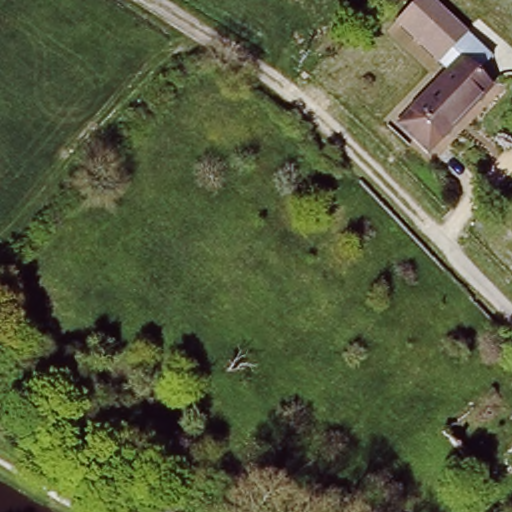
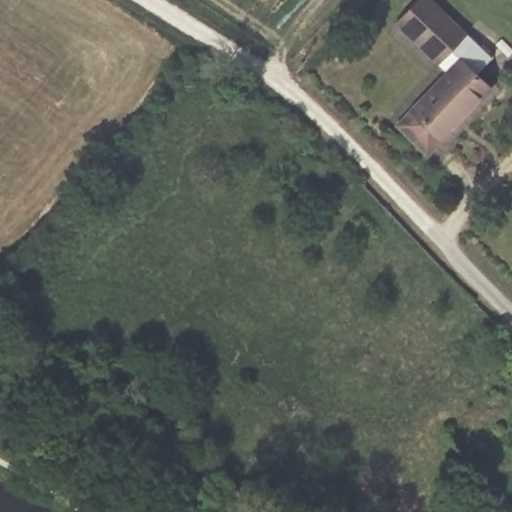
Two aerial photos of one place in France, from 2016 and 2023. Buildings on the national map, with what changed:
unchanged [(459,58),(489,84),(427,153),(410,138),(396,125),(410,110),(459,58)]

